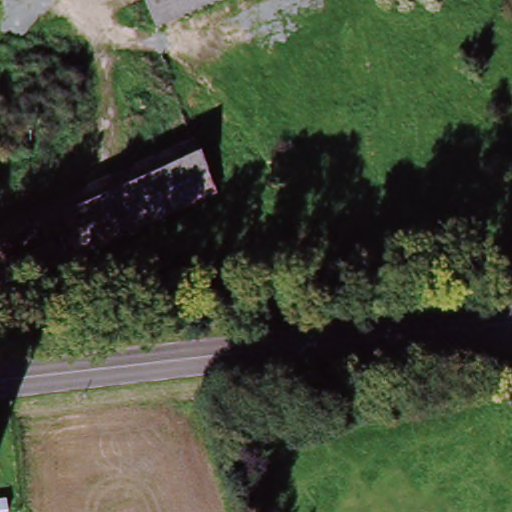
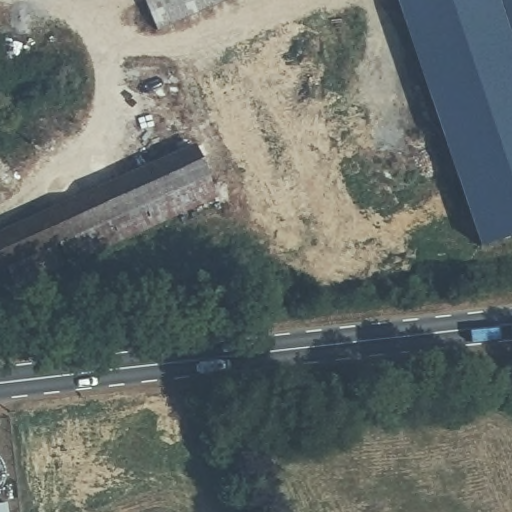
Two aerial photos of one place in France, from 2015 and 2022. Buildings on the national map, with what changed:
unchanged [(168,27),(156,0),(229,0),(168,27)]
new [(512,238),(480,249),(395,0),(512,0),(512,238)]
unchanged [(194,144),(218,197),(0,299),(0,235),(194,144)]

